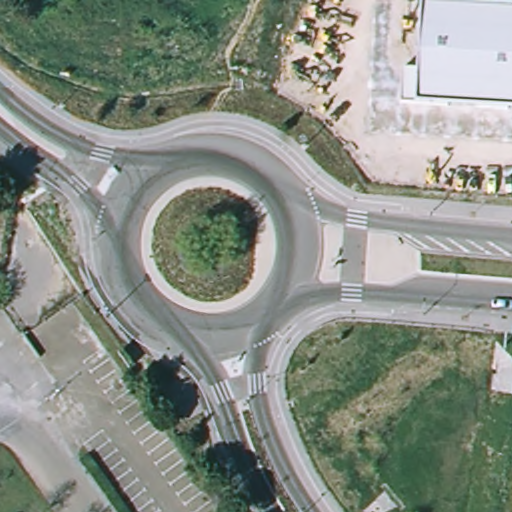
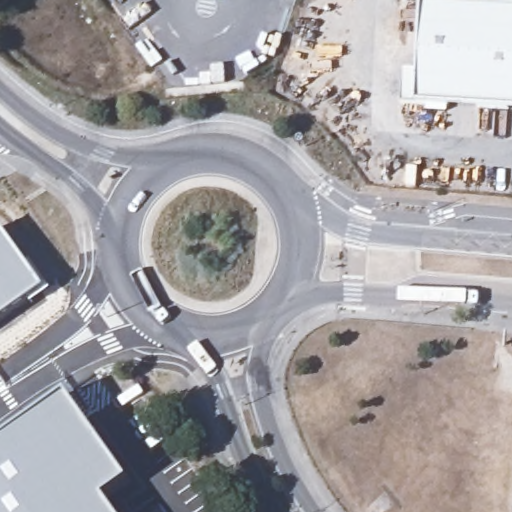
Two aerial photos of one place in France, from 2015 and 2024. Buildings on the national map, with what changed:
unchanged [(512,110),(403,105),(405,69),(420,70),(423,3),(512,7),(512,110)]
new [(1,228),(46,290),(0,323),(0,229),(1,228)]
new [(69,394),(130,482),(106,499),(115,512),(0,512),(0,443),(69,394)]

